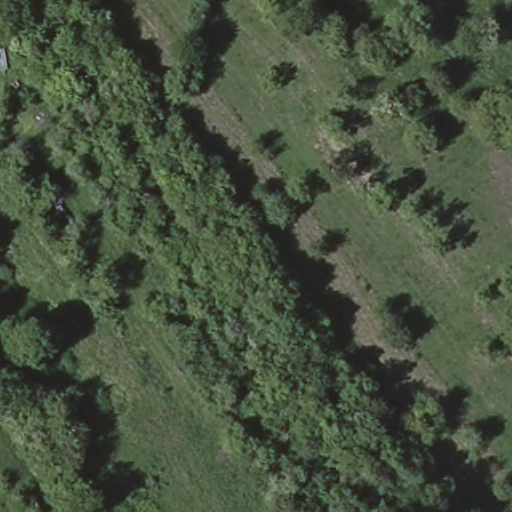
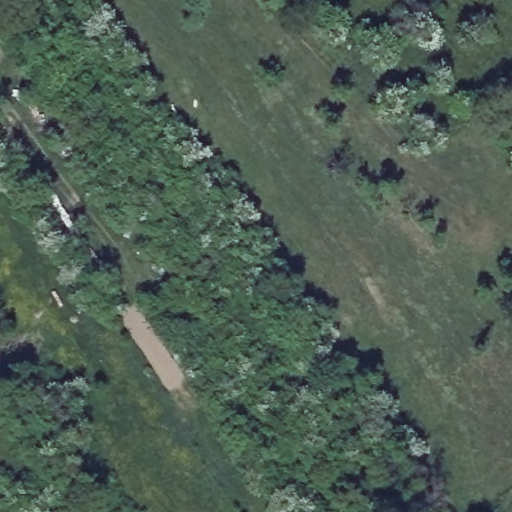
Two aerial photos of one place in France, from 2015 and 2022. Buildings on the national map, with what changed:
[]

